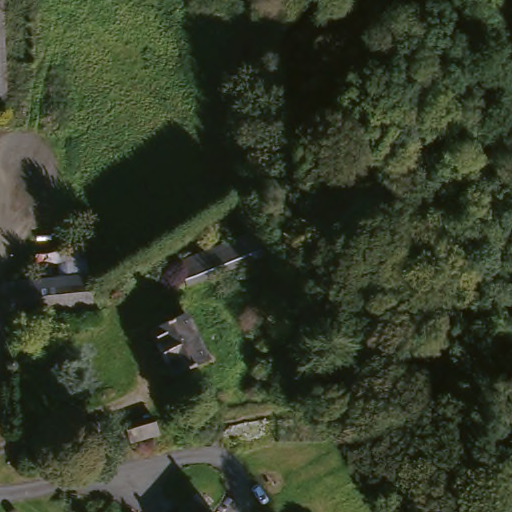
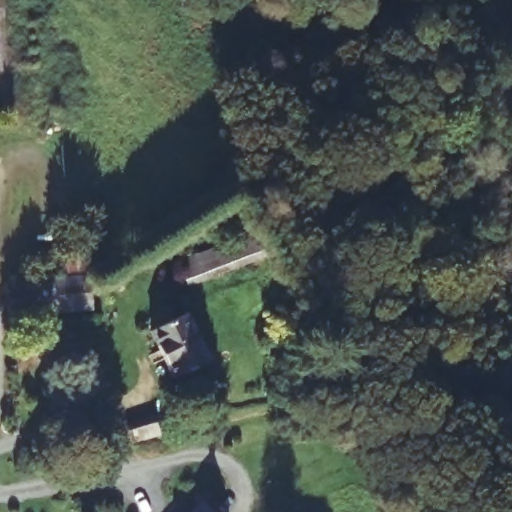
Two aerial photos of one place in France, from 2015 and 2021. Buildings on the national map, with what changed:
unchanged [(170,265),(243,239),(251,260),(211,274),(178,286),(170,265)]
unchanged [(31,282),(29,255),(80,249),(83,249),(86,275),(31,282)]
unchanged [(31,282),(86,275),(90,312),(8,319),(4,285),(31,282)]
unchanged [(183,319),(204,364),(190,371),(169,381),(147,335),(183,319)]
unchanged [(118,447),(114,429),(141,422),(146,441),(118,447)]
unchanged [(210,512),(192,512),(201,503),(210,512)]

